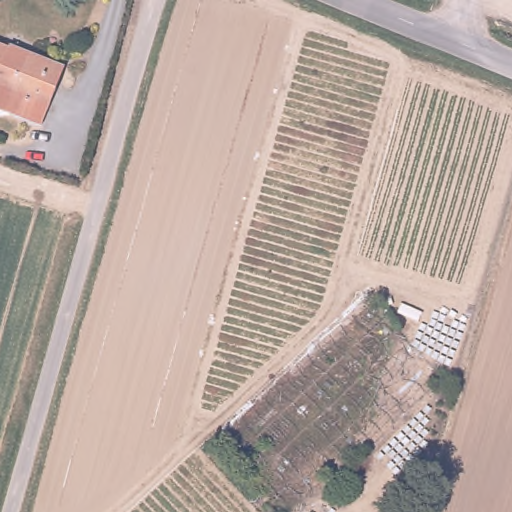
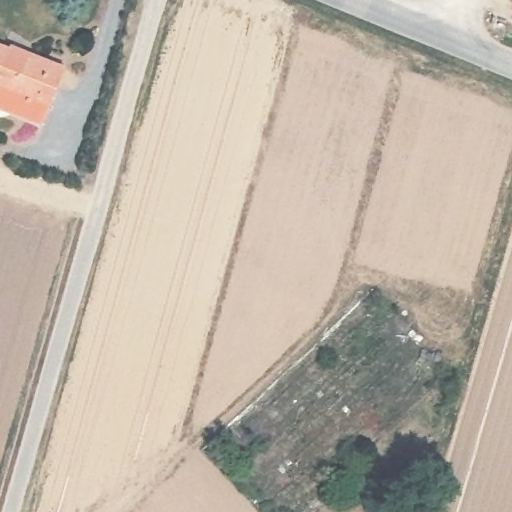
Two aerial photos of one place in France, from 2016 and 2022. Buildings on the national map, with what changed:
unchanged [(61,71),(54,89),(66,95),(57,114),(0,88),(0,44),(61,71)]

